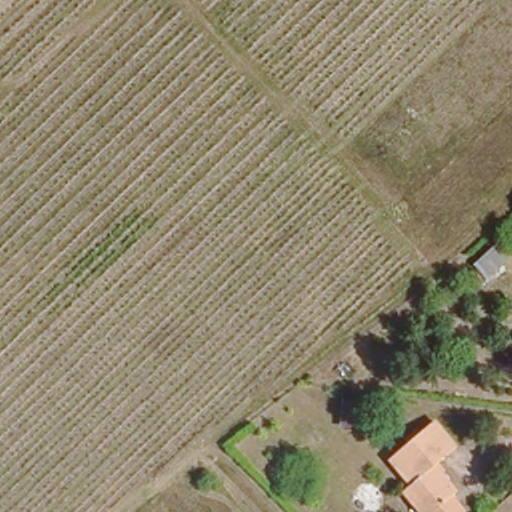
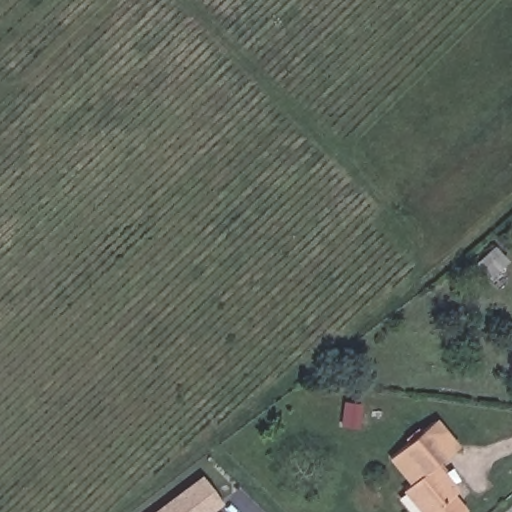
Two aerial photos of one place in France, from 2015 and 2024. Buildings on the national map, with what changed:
unchanged [(353,424),(336,423),(336,398),(353,399),(353,424)]
unchanged [(430,461),(448,485),(440,491),(454,509),(450,512),(410,512),(394,491),(404,483),(386,459),(431,423),(450,447),(430,461)]
new [(216,500),(200,512),(155,512),(200,478),(216,500)]

